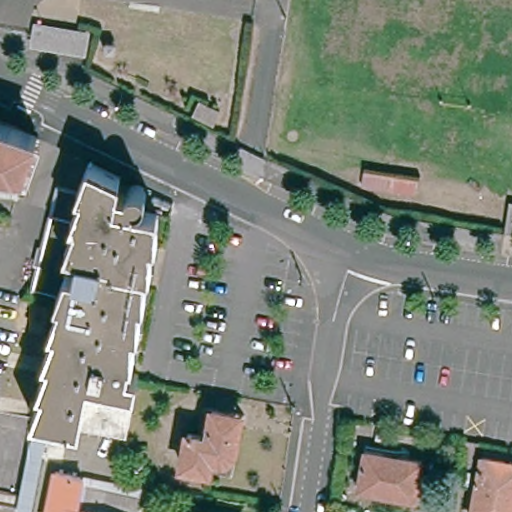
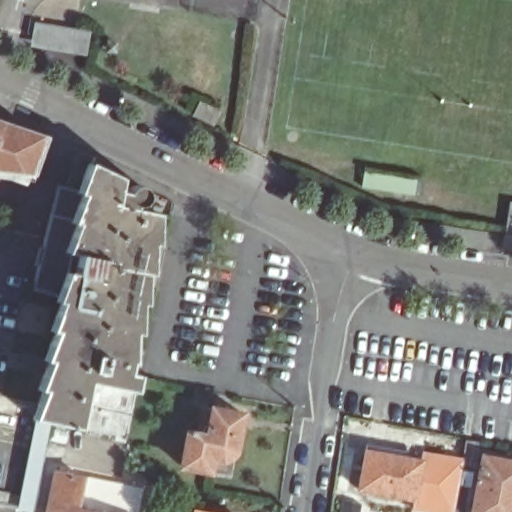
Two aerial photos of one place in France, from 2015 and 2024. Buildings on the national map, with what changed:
unchanged [(32,48),(36,25),(91,35),(90,56),(32,48)]
unchanged [(18,128),(40,138),(26,181),(12,179),(0,177),(0,121),(18,128)]
unchanged [(23,496),(28,468),(39,407),(41,405),(46,390),(50,367),(50,345),(57,329),(57,315),(62,303),(62,291),(40,287),(45,264),(42,263),(44,248),(48,248),(60,188),(83,193),(83,181),(90,163),(123,179),(120,193),(129,195),(132,191),(135,189),(139,188),(144,190),(146,192),(147,196),(146,202),(142,205),(137,206),(135,210),(157,214),(158,228),(152,242),(153,255),(145,272),(147,287),(140,302),(141,316),(135,329),(136,347),(135,358),(130,373),(141,375),(140,379),(129,438),(48,423),(48,424),(32,510),(0,504),(0,492),(23,496)]
unchanged [(235,413),(227,475),(178,468),(182,433),(203,435),(208,408),(235,413)]
unchanged [(479,447),(475,472),(463,470),(467,444),(479,447)]
new [(461,458),(452,512),(421,512),(412,511),(414,500),(416,500),(421,462),(422,451),(461,458)]
unchanged [(421,462),(416,500),(359,491),(365,453),(421,462)]
unchanged [(512,512),(473,512),(482,457),(512,463),(512,512)]
unchanged [(80,475),(74,504),(62,502),(60,512),(44,512),(51,469),(80,475)]
unchanged [(133,494),(130,512),(60,512),(62,502),(74,504),(78,505),(83,506),(84,498),(79,497),(82,485),(95,487),(133,494)]
unchanged [(20,512),(0,512),(0,505),(21,509),(20,512)]
unchanged [(195,512),(196,509),(211,512),(195,512)]

